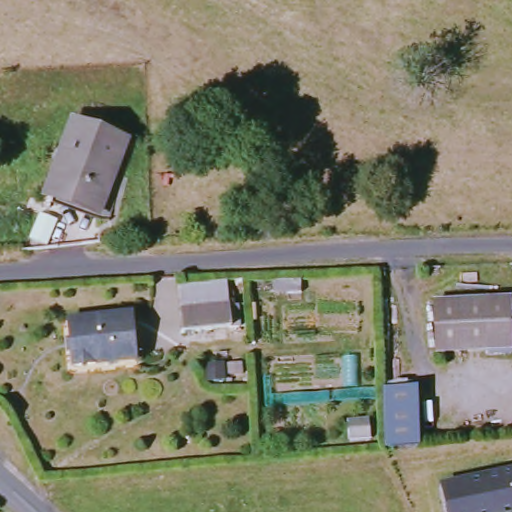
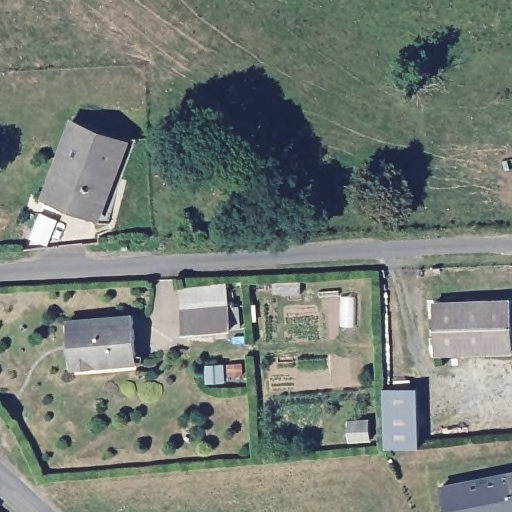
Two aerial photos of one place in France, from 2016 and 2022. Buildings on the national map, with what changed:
unchanged [(74,122),(122,139),(106,184),(113,186),(103,214),(48,194),(74,122)]
unchanged [(185,335),(183,312),(182,288),(228,286),(231,304),(232,327),(185,335)]
unchanged [(435,304),(512,302),(512,351),(438,353),(435,304)]
unchanged [(139,354),(97,358),(97,363),(71,365),(68,321),(136,316),(139,354)]
unchanged [(420,383),(423,446),(391,449),(388,386),(420,383)]
unchanged [(353,422),(375,420),(376,438),(355,439),(353,422)]
unchanged [(512,470),(512,512),(445,512),(440,483),(512,470)]

